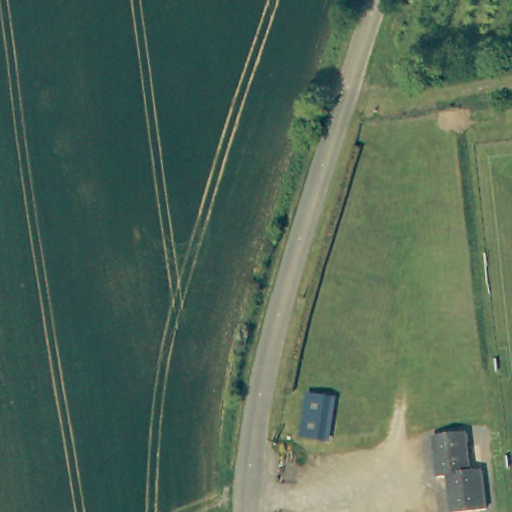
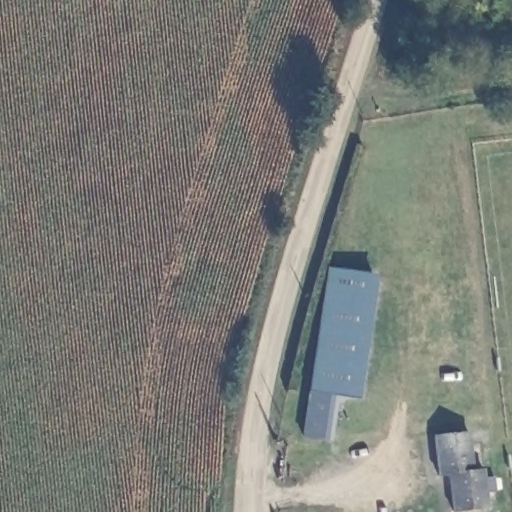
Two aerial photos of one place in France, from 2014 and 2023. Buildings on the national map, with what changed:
new [(358,400),(339,397),(332,441),(301,438),(326,268),(379,275),(358,400)]
demolished [(308,433),(312,390),(340,393),(336,436),(308,433)]
unchanged [(455,475),(445,475),(441,435),(468,432),(473,470),(487,470),(490,510),(458,512),(455,475)]

